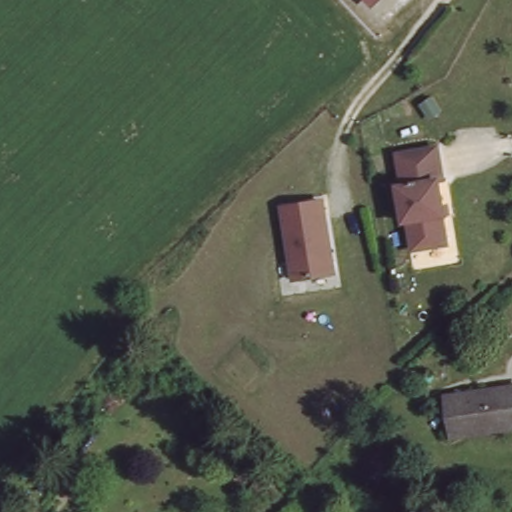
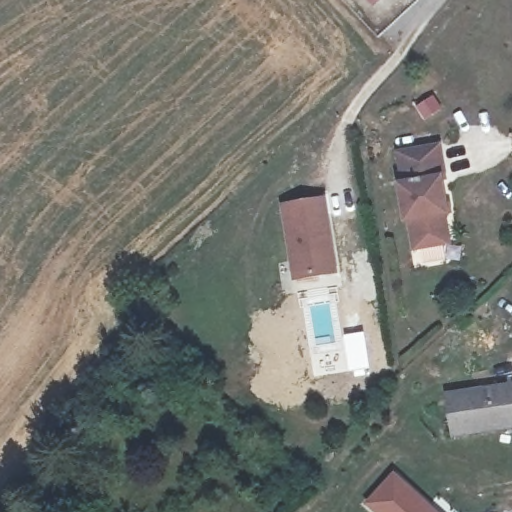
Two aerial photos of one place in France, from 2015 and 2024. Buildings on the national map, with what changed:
unchanged [(453,216),(444,217),(450,245),(412,252),(408,222),(398,223),(390,185),(399,185),(395,154),(407,151),(410,143),(442,139),(453,216)]
unchanged [(279,204),(318,197),(329,270),(290,276),(279,204)]
unchanged [(451,399),(450,395),(512,381),(512,426),(462,440),(459,429),(451,399)]
new [(364,504),(395,471),(438,512),(374,512),(364,504)]

